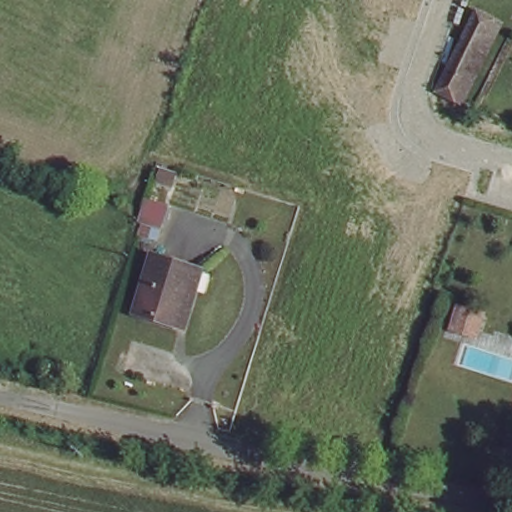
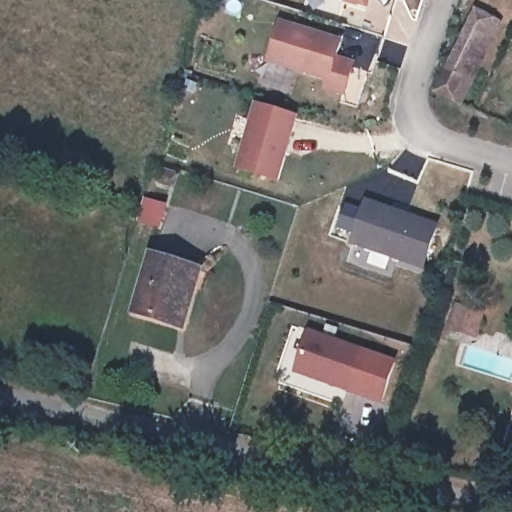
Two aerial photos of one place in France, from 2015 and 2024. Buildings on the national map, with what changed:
new [(354,0),(371,0),(370,5),(354,0)]
unchanged [(500,19),(464,101),(446,93),(482,11),(500,19)]
new [(341,37),(337,51),(352,55),(343,90),(322,84),(324,74),(266,55),(278,15),(341,37)]
new [(295,110),(277,177),(233,164),(254,98),(295,110)]
new [(435,220),(420,265),(345,238),(360,194),(435,220)]
unchanged [(192,325),(185,324),(142,310),(160,255),(202,269),(208,270),(192,325)]
new [(484,322),(477,339),(448,330),(457,303),(473,308),(484,322)]
new [(361,346),(347,388),(293,369),(307,327),(361,346)]

